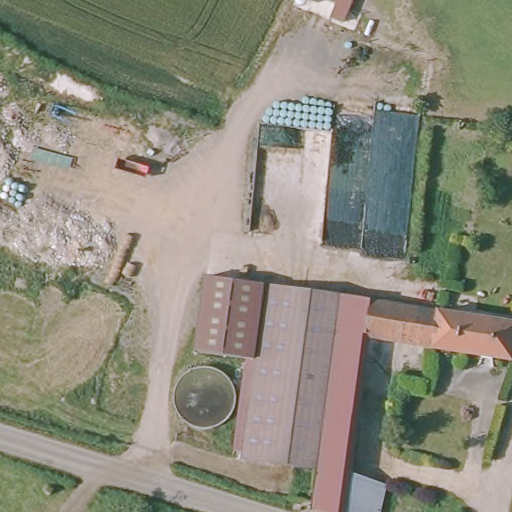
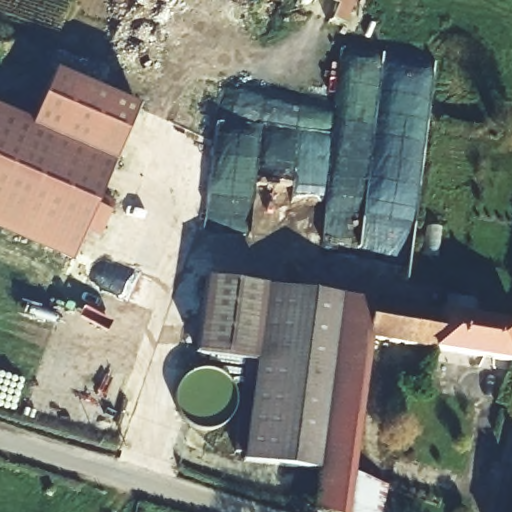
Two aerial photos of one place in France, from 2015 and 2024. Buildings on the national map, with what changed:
unchanged [(331,19),(337,4),(327,0),(355,0),(345,25),(331,19)]
new [(139,106),(114,164),(100,194),(113,201),(110,211),(98,240),(84,232),(71,263),(0,233),(0,108),(32,121),(54,71),(139,106)]
unchanged [(250,360),(196,352),(206,277),(263,284),(250,360)]
unchanged [(263,284),(319,292),(343,296),(383,303),(512,324),(512,363),(374,341),(354,479),(389,486),(385,512),(318,512),(314,511),(321,465),(324,441),(238,427),(263,284)]
new [(247,429),(324,441),(321,465),(320,472),(243,461),(243,453),(234,452),(238,427),(247,429)]

